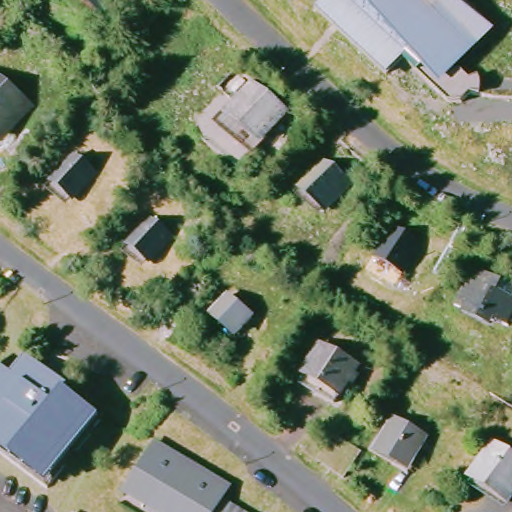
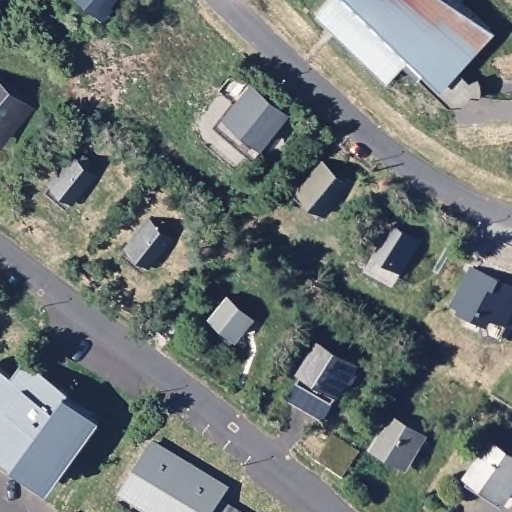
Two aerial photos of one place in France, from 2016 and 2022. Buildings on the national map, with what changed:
unchanged [(78,0),(112,0),(99,16),(78,0)]
unchanged [(448,76),(450,91),(442,101),(437,103),(432,101),(426,99),(418,92),(383,53),(369,66),(311,1),(312,0),(449,0),(473,25),(433,65),(448,76)]
unchanged [(512,30),(512,48),(497,35),(507,25),(512,30)]
unchanged [(278,113),(256,142),(226,119),(248,91),(278,113)]
unchanged [(0,95),(14,107),(0,125),(0,95)]
unchanged [(72,165),(76,159),(82,164),(78,169),(85,175),(64,201),(48,188),(68,161),(72,165)]
unchanged [(320,175),(324,171),(341,185),(319,213),(288,188),(306,165),(320,175)]
unchanged [(141,263),(123,250),(144,222),(161,236),(141,263)]
unchanged [(394,303),(369,289),(391,253),(415,267),(394,303)]
unchanged [(491,298),(506,305),(494,328),(457,310),(476,276),(496,287),(491,298)]
unchanged [(188,292),(203,303),(179,333),(165,322),(188,292)]
unchanged [(246,317),(234,335),(208,318),(221,300),(246,317)]
unchanged [(354,370),(334,405),(301,386),(322,351),(354,370)]
unchanged [(44,489),(0,456),(0,372),(7,378),(19,362),(59,391),(56,396),(93,423),(48,484),(44,489)]
unchanged [(403,467),(390,459),(387,464),(371,455),(387,428),(416,446),(403,467)]
unchanged [(349,442),(358,448),(341,475),(314,458),(331,431),(349,442)]
unchanged [(227,489),(220,501),(219,503),(216,507),(214,512),(147,512),(128,501),(119,495),(149,443),(155,447),(227,489)]
unchanged [(512,464),(512,493),(505,489),(498,501),(466,481),(486,448),(512,464)]
unchanged [(239,512),(214,512),(216,507),(219,503),(220,501),(239,512)]

